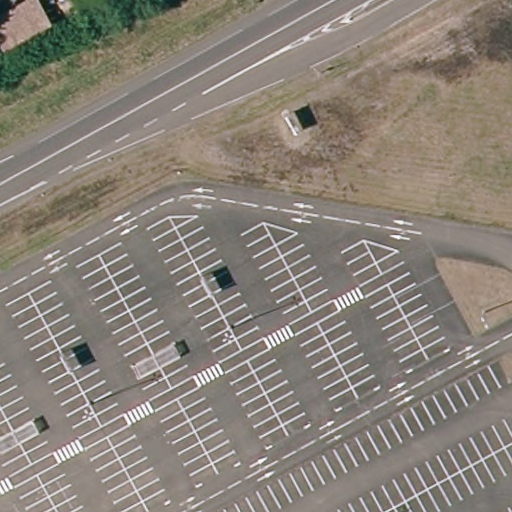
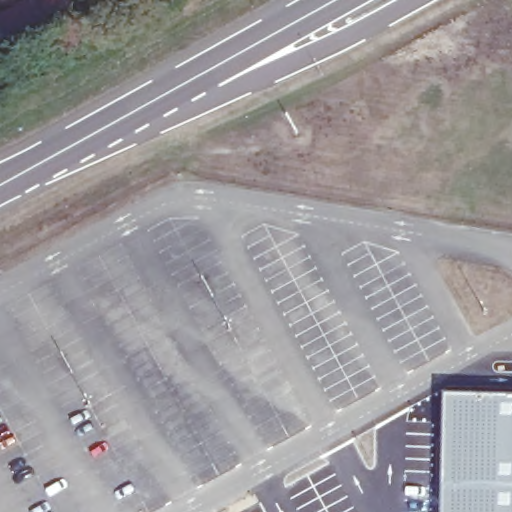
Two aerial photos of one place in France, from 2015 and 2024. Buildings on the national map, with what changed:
unchanged [(35,1),(48,26),(10,47),(0,29),(0,21),(35,1)]
new [(512,394),(512,512),(439,512),(443,392),(512,394)]

